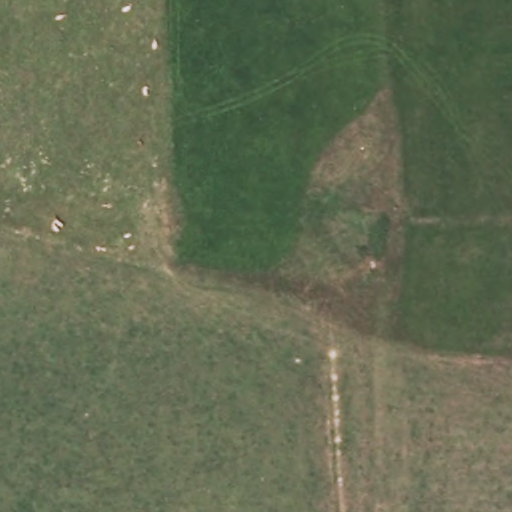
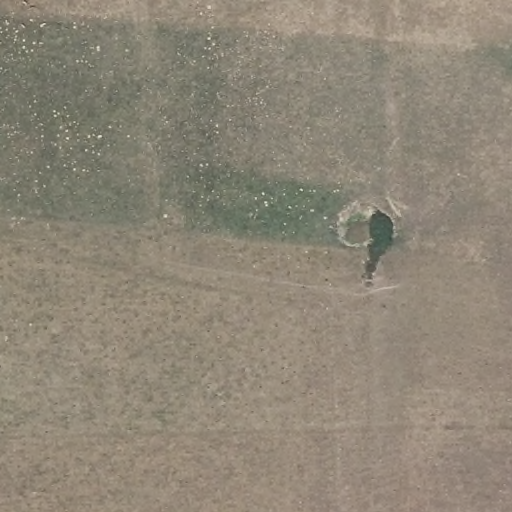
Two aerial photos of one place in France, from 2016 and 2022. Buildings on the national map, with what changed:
unchanged [(190,231),(174,230),(174,216),(190,217),(190,231)]

